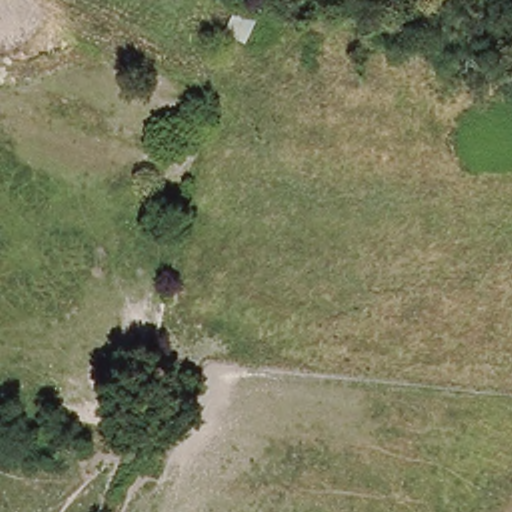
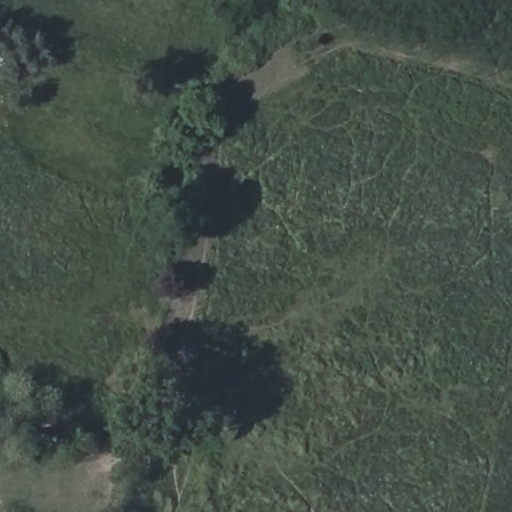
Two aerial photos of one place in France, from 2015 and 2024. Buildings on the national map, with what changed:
unchanged [(256,42),(230,31),(241,0),(271,11),(256,42)]

